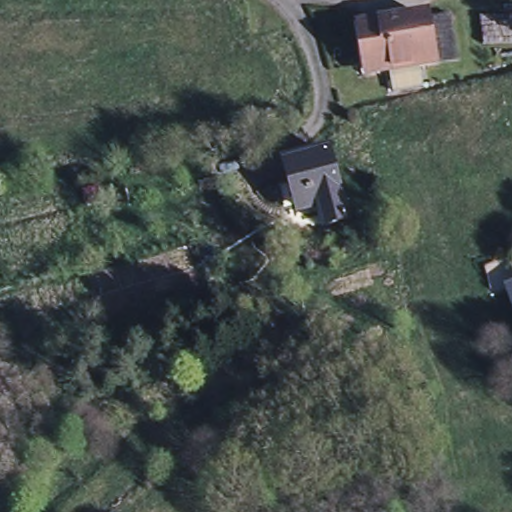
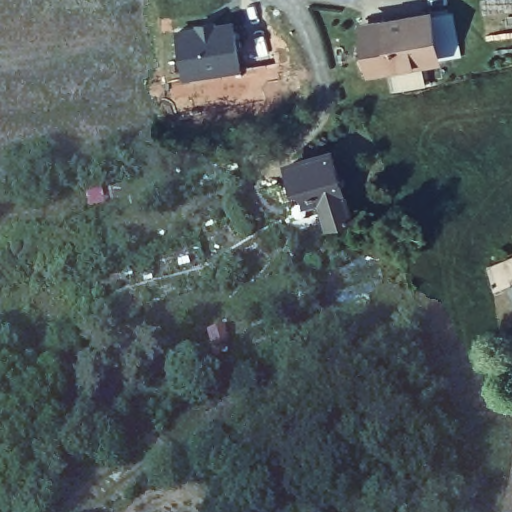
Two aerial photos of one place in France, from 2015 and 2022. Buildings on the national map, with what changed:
unchanged [(438,13),(445,56),(420,61),(413,16),(438,13)]
unchanged [(359,71),(351,27),(374,25),(374,20),(413,14),(413,16),(420,61),(359,71)]
new [(194,27),(210,24),(211,27),(229,24),(238,72),(183,81),(174,34),(195,30),(194,27)]
unchanged [(329,217),(324,194),(305,199),(290,204),(282,175),(297,171),(292,152),(331,142),(344,188),(351,211),(329,217)]
unchanged [(512,290),(512,295),(511,291),(512,290)]

